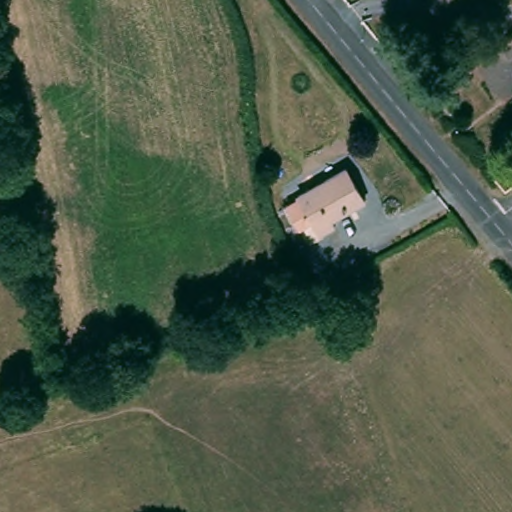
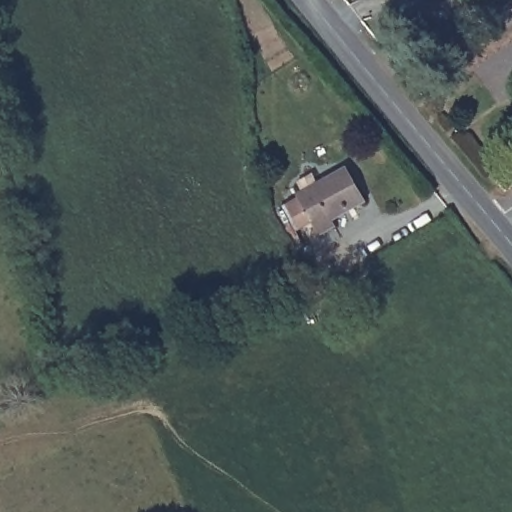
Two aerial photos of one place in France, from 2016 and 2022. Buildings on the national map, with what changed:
unchanged [(303,192),(350,164),(375,205),(327,234),(318,219),(300,229),(290,208),(306,197),(303,192)]

